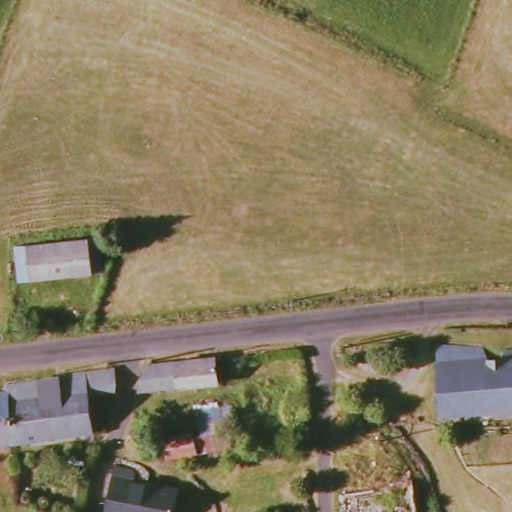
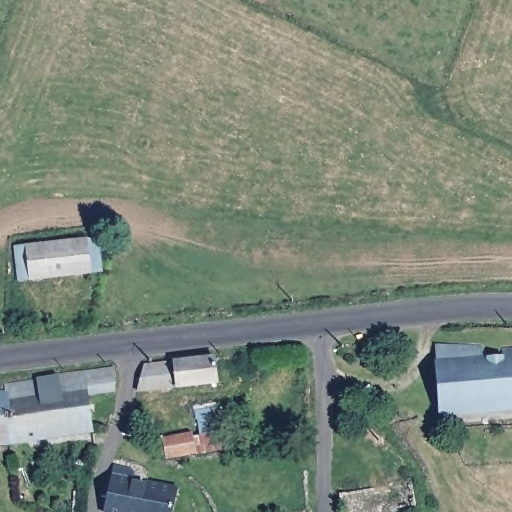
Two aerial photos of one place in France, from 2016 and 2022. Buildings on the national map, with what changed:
unchanged [(99,277),(27,286),(23,251),(95,242),(99,277)]
unchanged [(443,419),(439,366),(442,366),(441,350),(487,352),(490,364),(507,364),(507,355),(512,355),(512,415),(443,419)]
unchanged [(221,387),(142,397),(149,370),(219,362),(221,387)]
unchanged [(0,450),(0,399),(15,398),(13,391),(47,386),(52,398),(67,395),(67,379),(120,374),(125,389),(123,396),(97,399),(100,435),(18,449),(16,449),(0,450)]
unchanged [(225,454),(195,459),(193,455),(186,456),(182,437),(191,436),(192,438),(222,433),(225,454)]
unchanged [(177,488),(171,512),(103,512),(110,477),(177,488)]
unchanged [(421,512),(346,512),(343,494),(416,480),(417,484),(421,512)]

